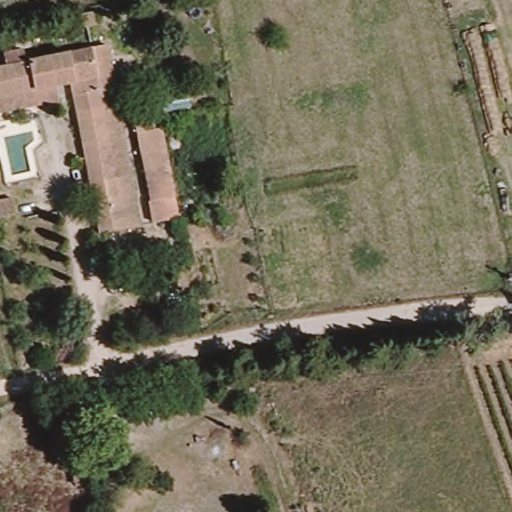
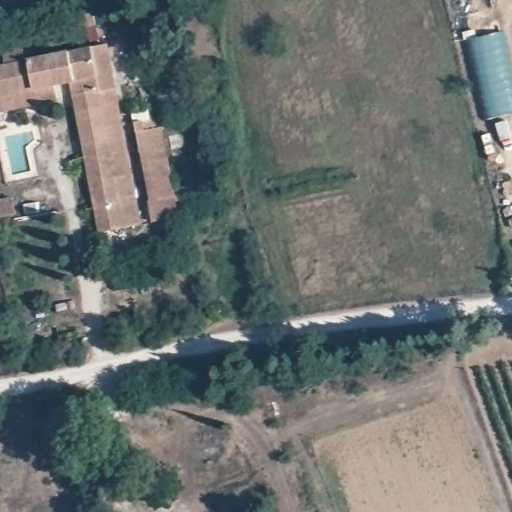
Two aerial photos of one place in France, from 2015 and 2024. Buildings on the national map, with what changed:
new [(471,40),(504,31),(512,64),(512,113),(490,118),(471,40)]
unchanged [(53,88),(56,99),(0,112),(0,67),(1,66),(1,52),(19,49),(22,60),(104,44),(138,223),(98,230),(73,83),(53,88)]
unchanged [(131,127),(161,120),(180,215),(148,221),(131,127)]

